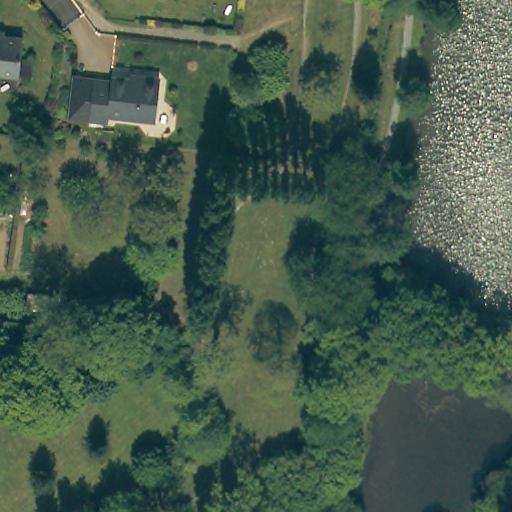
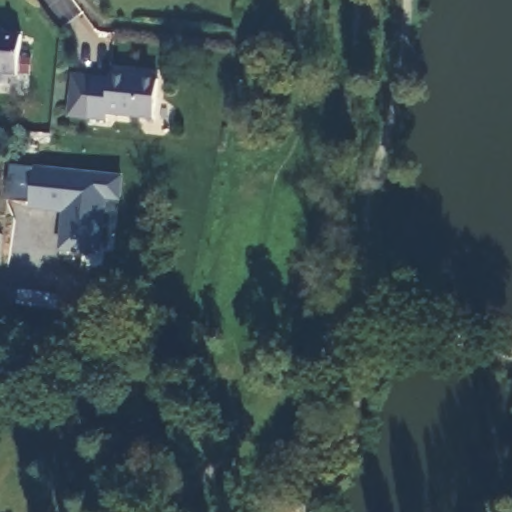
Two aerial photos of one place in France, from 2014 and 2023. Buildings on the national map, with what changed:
unchanged [(0,36),(17,38),(13,76),(0,75),(0,36)]
unchanged [(79,72),(99,74),(116,75),(116,70),(146,73),(152,69),(160,70),(164,75),(161,112),(113,107),(111,115),(95,114),(75,111),(79,72)]
new [(32,167),(120,177),(118,199),(104,198),(98,254),(58,250),(62,211),(28,207),(32,167)]

